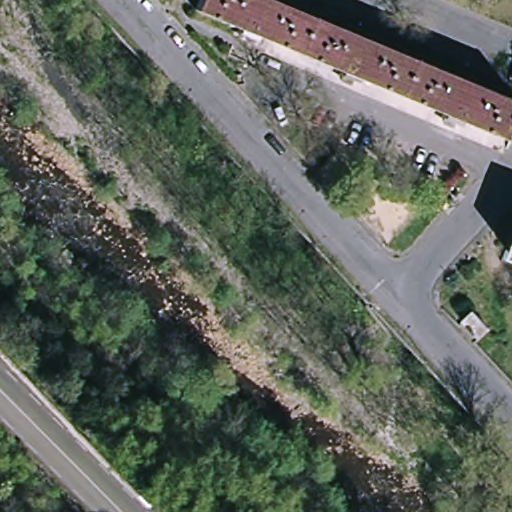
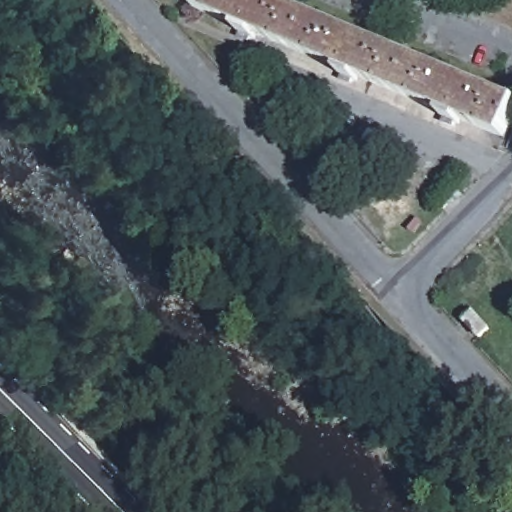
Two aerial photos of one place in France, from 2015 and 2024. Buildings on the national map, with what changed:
unchanged [(297,51),(206,13),(195,8),(199,0),(275,0),(312,15),(297,51)]
unchanged [(400,94),(297,51),(312,15),(415,58),(400,94)]
unchanged [(512,99),(512,116),(503,137),(400,94),(415,58),(512,99)]
unchanged [(474,312),(490,329),(480,338),(464,320),(474,312)]

